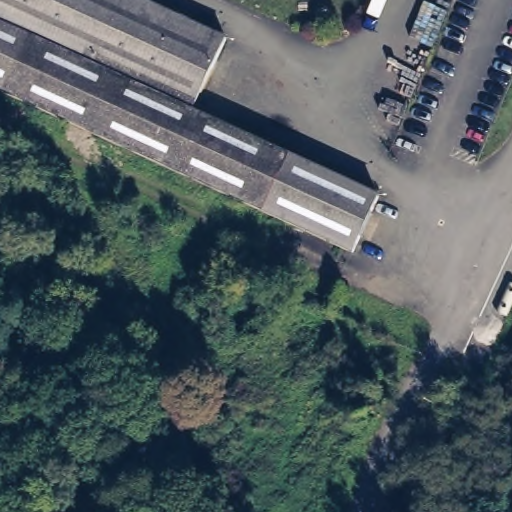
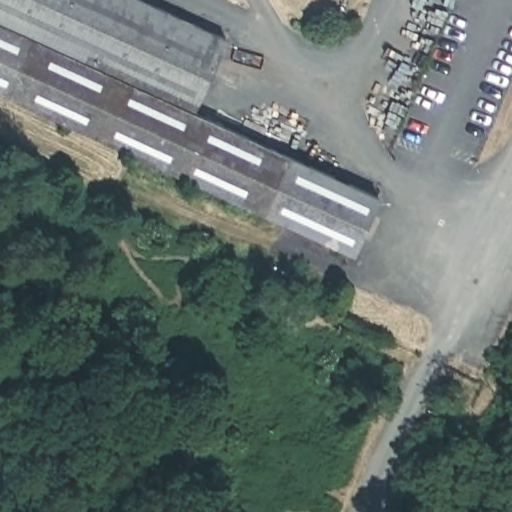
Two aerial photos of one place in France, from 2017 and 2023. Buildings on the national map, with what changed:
unchanged [(141,0),(231,41),(198,113),(383,199),(357,255),(0,91),(0,0),(141,0)]

